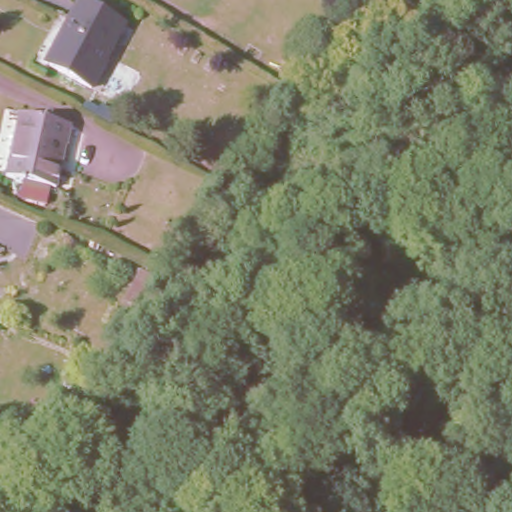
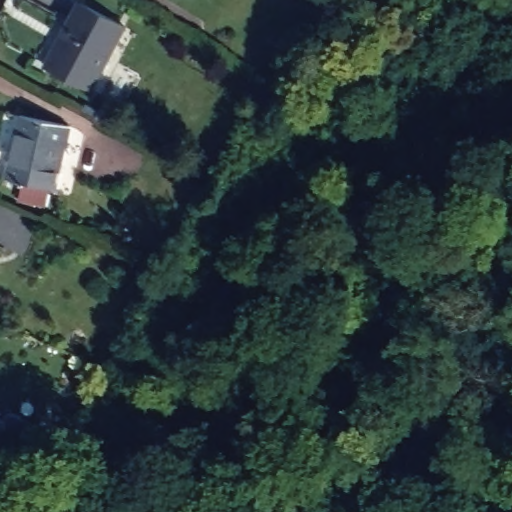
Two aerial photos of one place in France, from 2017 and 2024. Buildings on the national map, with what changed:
unchanged [(45,63),(79,1),(124,25),(90,88),(45,63)]
unchanged [(68,192),(54,189),(5,178),(19,114),(68,124),(64,145),(78,149),(68,192)]

